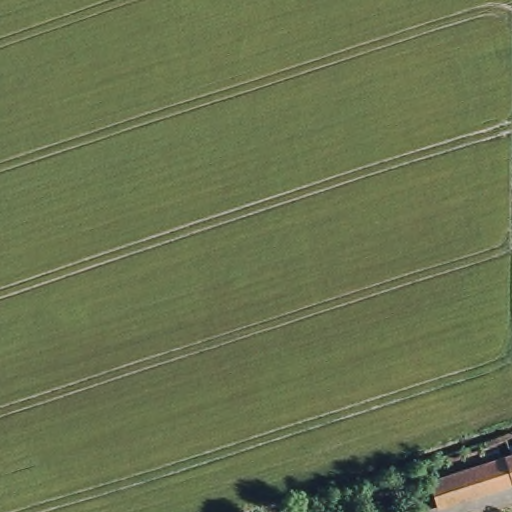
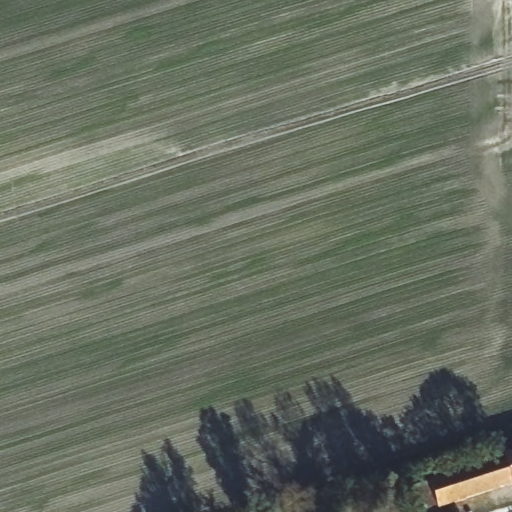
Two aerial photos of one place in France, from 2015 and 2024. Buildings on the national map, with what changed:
unchanged [(512,453),(512,482),(435,508),(427,482),(512,453)]

